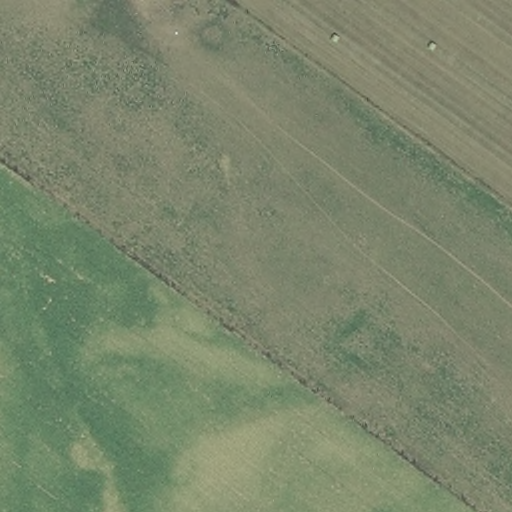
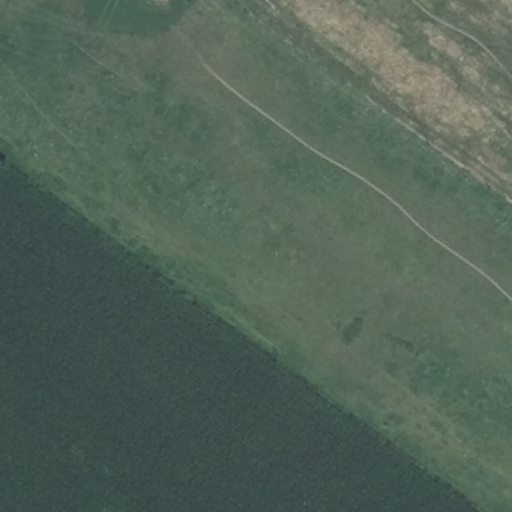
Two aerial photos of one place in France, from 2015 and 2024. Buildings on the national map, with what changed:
unchanged [(161,0),(164,0),(163,1),(161,0)]

